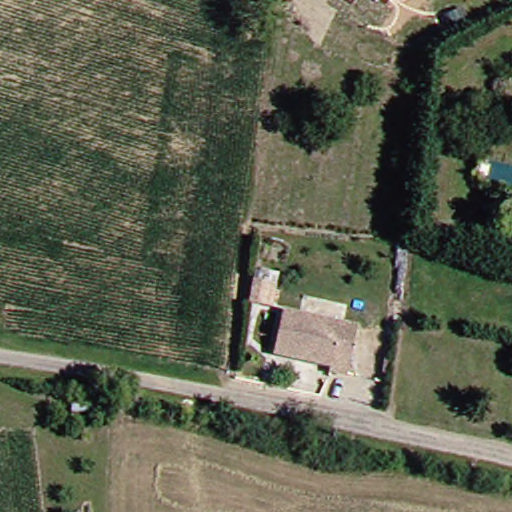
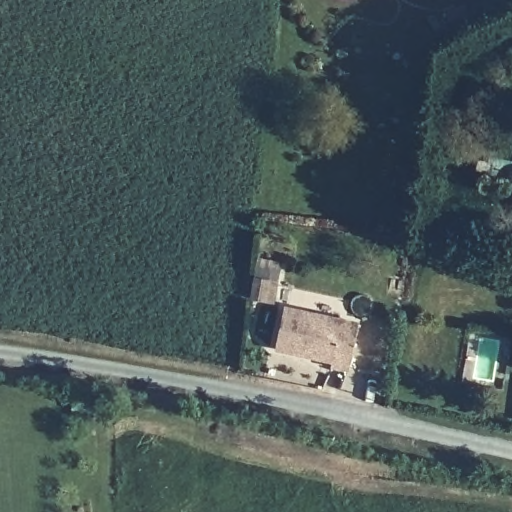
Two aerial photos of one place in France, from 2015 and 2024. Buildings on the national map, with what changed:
unchanged [(343,372),(324,369),(325,362),(269,350),(277,314),(278,309),(352,325),(352,329),(343,372)]

